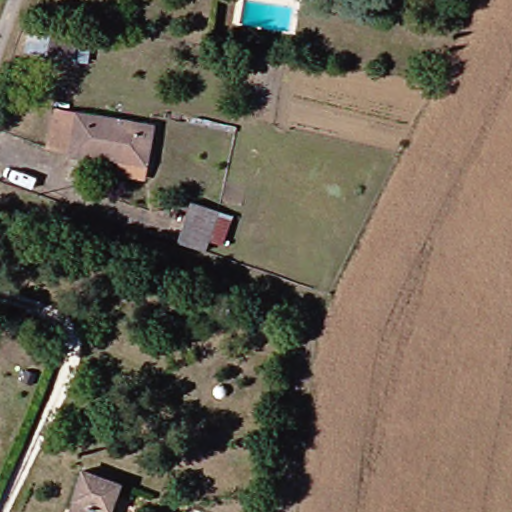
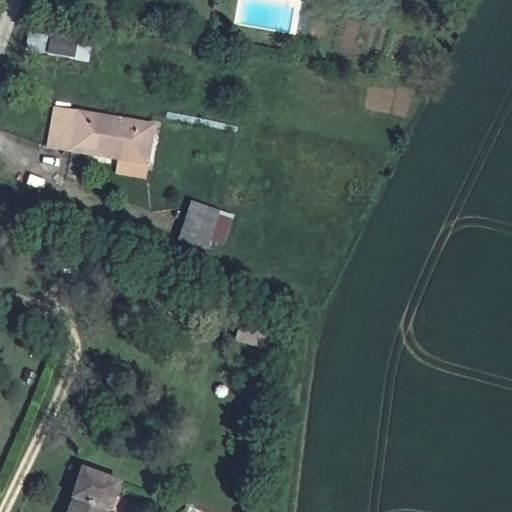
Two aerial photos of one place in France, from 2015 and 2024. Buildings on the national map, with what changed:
unchanged [(73,44),(68,63),(48,57),(51,39),(73,44)]
unchanged [(45,147),(52,110),(155,127),(148,167),(45,147)]
unchanged [(182,242),(195,203),(224,212),(211,252),(182,242)]
unchanged [(85,469),(120,486),(110,512),(70,512),(85,469)]

